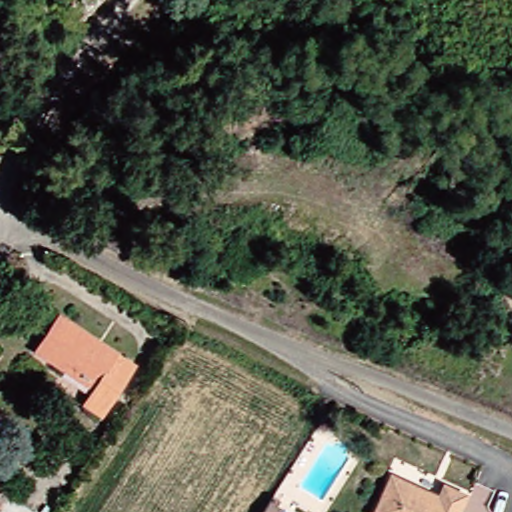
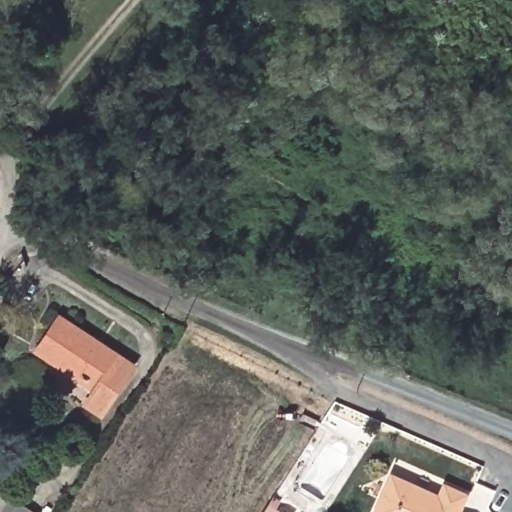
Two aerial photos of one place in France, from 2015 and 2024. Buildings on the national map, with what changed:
unchanged [(130,361),(100,417),(78,408),(90,390),(30,352),(52,312),(130,361)]
unchanged [(443,485),(463,495),(456,512),(372,512),(390,475),(437,496),(443,485)]
unchanged [(0,512),(0,490),(33,512),(0,512)]
unchanged [(268,512),(258,512),(261,507),(268,512)]

